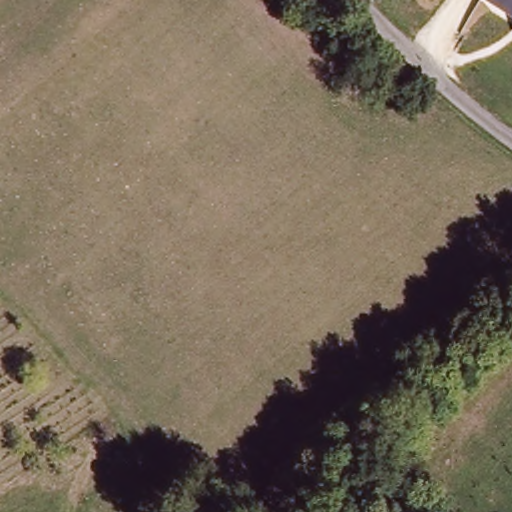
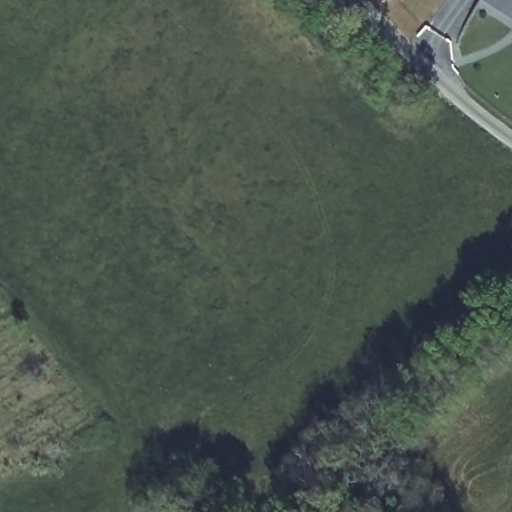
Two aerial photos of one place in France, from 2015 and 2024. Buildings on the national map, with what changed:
unchanged [(485,0),(512,0),(512,16),(485,0)]

